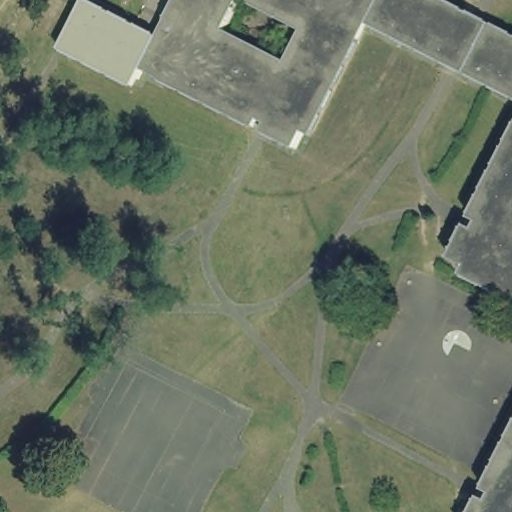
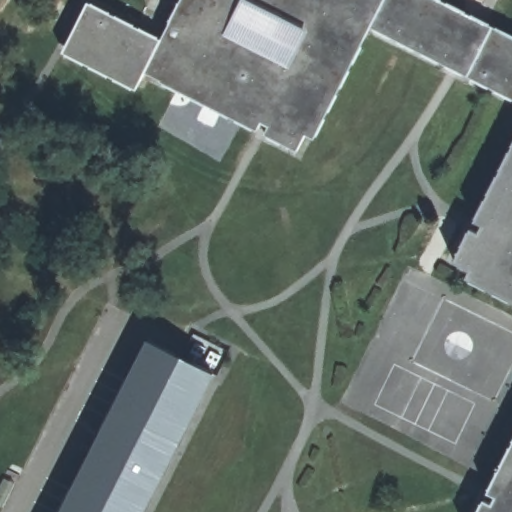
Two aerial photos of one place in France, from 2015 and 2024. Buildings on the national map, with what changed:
unchanged [(317,135),(304,131),(297,148),(146,70),(137,88),(63,50),(89,0),(161,37),(180,0),(447,0),(512,33),(512,97),(371,26),(317,135)]
unchanged [(472,266),(453,258),(512,151),(512,298),(467,276),(472,266)]
new [(147,339),(215,373),(144,512),(59,512),(147,339)]
unchanged [(512,440),(512,512),(475,512),(512,440)]

